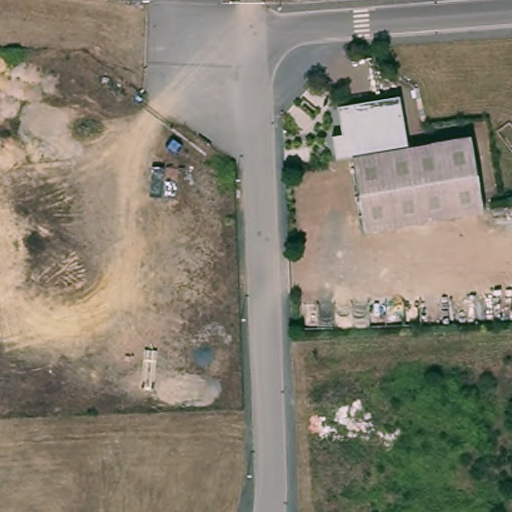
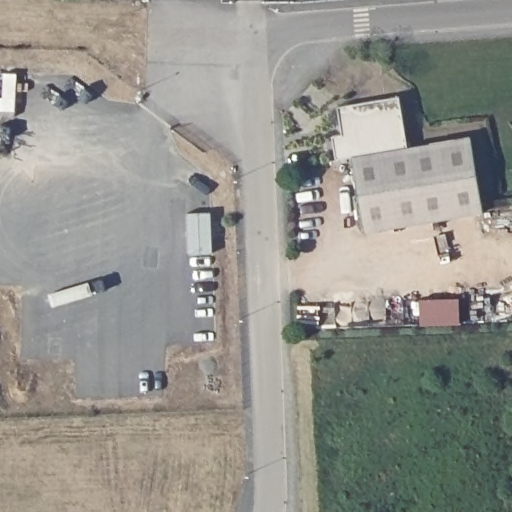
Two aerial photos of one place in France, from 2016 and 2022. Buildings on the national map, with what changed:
unchanged [(397,98),(405,148),(470,137),(483,215),(366,235),(353,159),(336,161),(333,138),(341,136),(339,108),(397,98)]
new [(459,300),(460,324),(420,325),(420,300),(459,300)]

